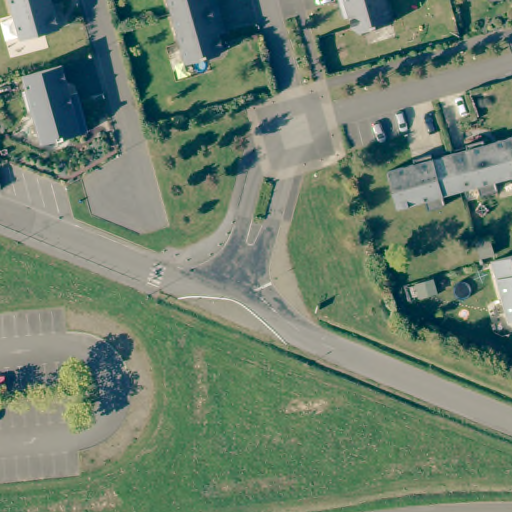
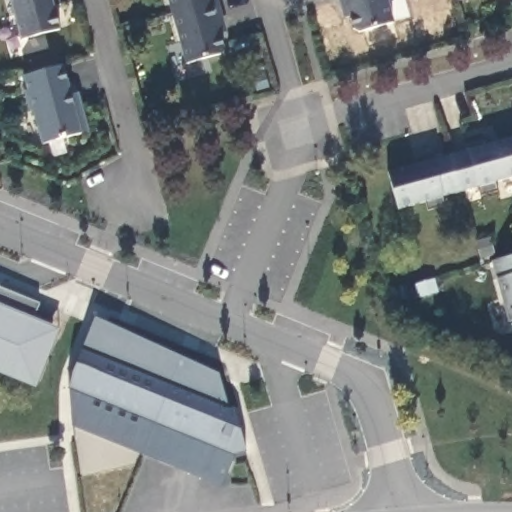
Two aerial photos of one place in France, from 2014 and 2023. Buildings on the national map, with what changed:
unchanged [(21,41),(10,0),(51,0),(59,30),(21,41)]
unchanged [(170,0),(201,0),(172,7),(170,0)]
unchanged [(214,17),(222,45),(219,49),(186,58),(172,7),(201,0),(217,0),(221,16),(214,17)]
unchanged [(358,32),(353,29),(346,6),(342,8),(340,0),(386,0),(392,22),(358,32)]
unchanged [(70,95),(77,94),(88,132),(42,145),(33,111),(29,112),(24,92),(27,91),(23,76),(38,72),(51,69),(62,66),(70,95)]
unchanged [(465,144),(483,139),(485,144),(512,136),(512,177),(495,181),(498,190),(479,196),(477,186),(460,191),(449,154),(466,149),(465,144)]
unchanged [(460,191),(442,196),(445,205),(427,210),(424,201),(397,209),(387,171),(414,164),(412,159),(430,154),(432,159),(449,154),(460,191)]
unchanged [(1,190),(0,189),(0,185),(1,190)]
unchanged [(492,260),(512,255),(512,321),(509,321),(492,260)]
new [(39,304),(34,319),(59,330),(35,390),(0,375),(0,288),(39,304)]
new [(81,350),(95,317),(218,374),(219,376),(229,410),(233,408),(246,451),(235,455),(226,477),(177,457),(173,467),(141,455),(144,447),(71,417),(69,387),(72,373),(81,350)]
new [(144,447),(141,455),(173,467),(177,457),(226,477),(221,487),(72,427),(71,417),(144,447)]

